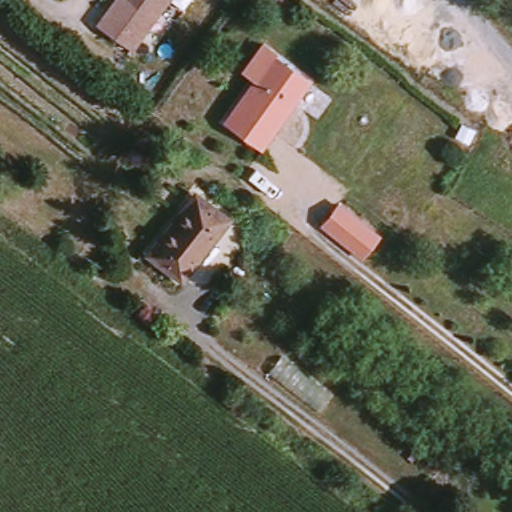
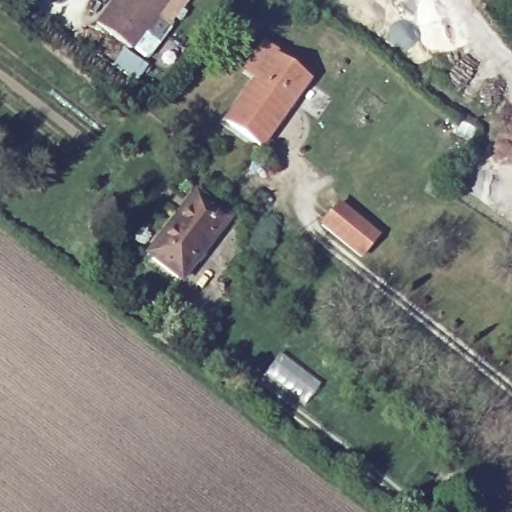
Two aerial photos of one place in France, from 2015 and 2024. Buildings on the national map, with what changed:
unchanged [(136,50),(103,23),(122,0),(177,0),(136,50)]
unchanged [(271,148),(235,123),(265,79),(253,70),(273,42),(285,51),(282,54),(317,78),(271,148)]
unchanged [(233,216),(187,278),(154,254),(201,192),(233,216)]
unchanged [(384,236),(368,255),(332,226),(347,206),(384,236)]

